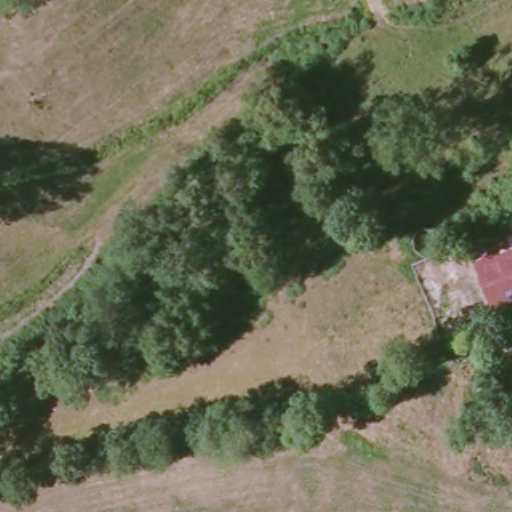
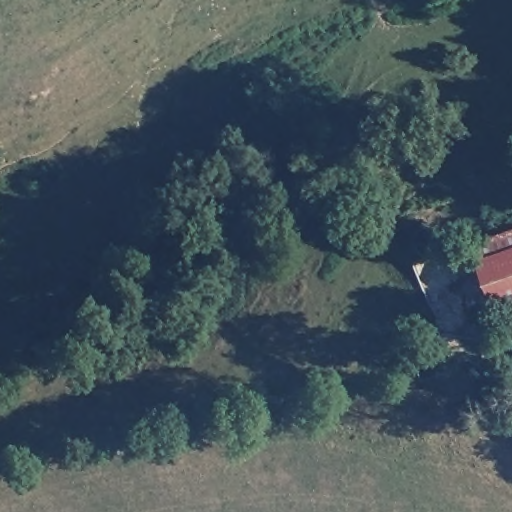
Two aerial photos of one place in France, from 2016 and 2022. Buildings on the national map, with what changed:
unchanged [(512,297),(488,305),(470,240),(512,226),(512,297)]

